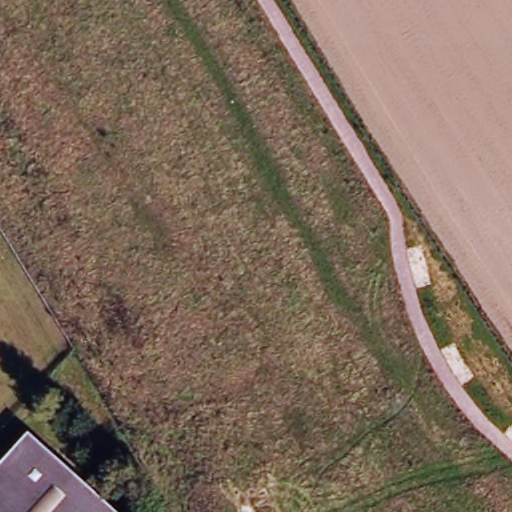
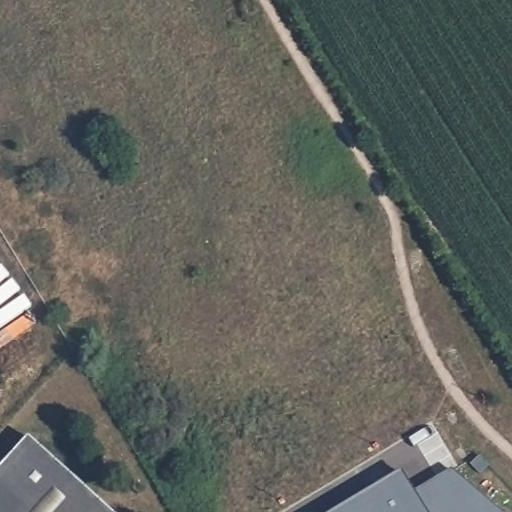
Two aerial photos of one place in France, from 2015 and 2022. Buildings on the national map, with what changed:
unchanged [(113,512),(0,512),(0,469),(30,437),(113,512)]
new [(401,471),(413,492),(452,470),(499,512),(335,512),(401,471)]

